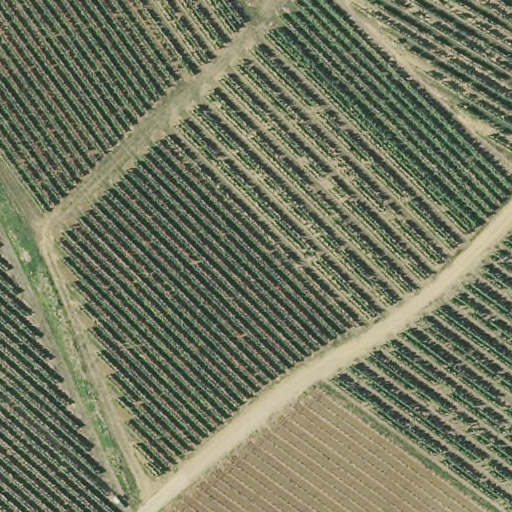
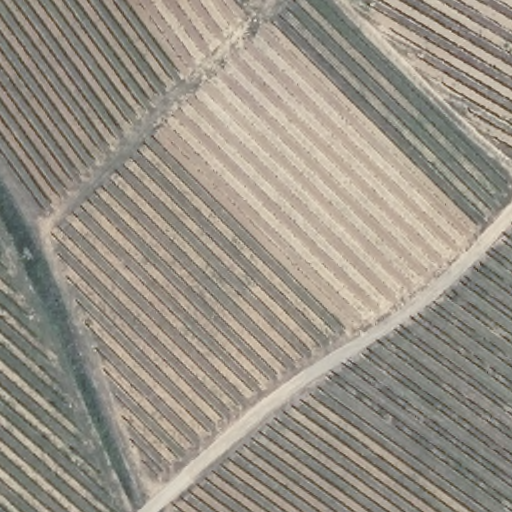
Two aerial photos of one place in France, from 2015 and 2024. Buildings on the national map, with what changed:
[]

